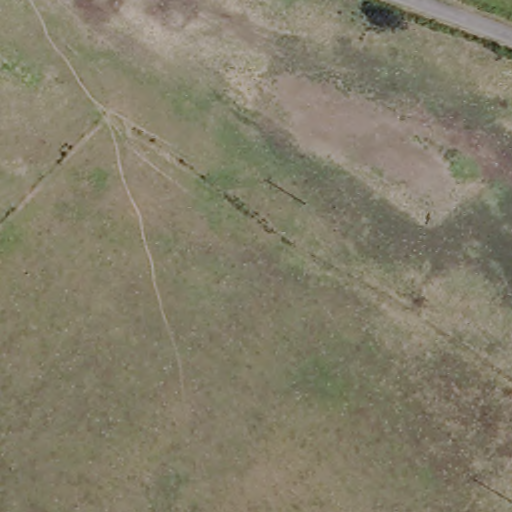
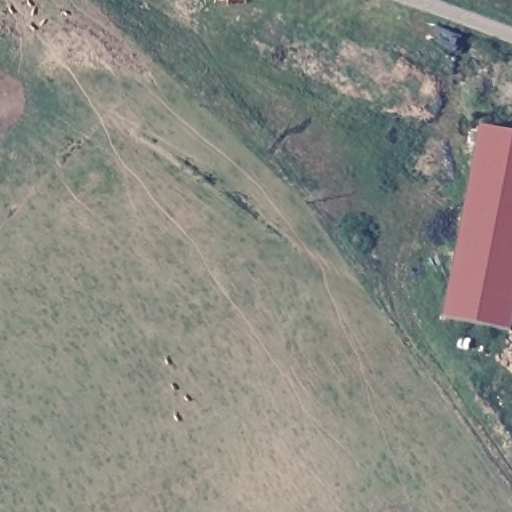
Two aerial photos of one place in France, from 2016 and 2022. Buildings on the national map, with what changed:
new [(480,128),(512,134),(512,327),(511,332),(443,318),(480,128)]

